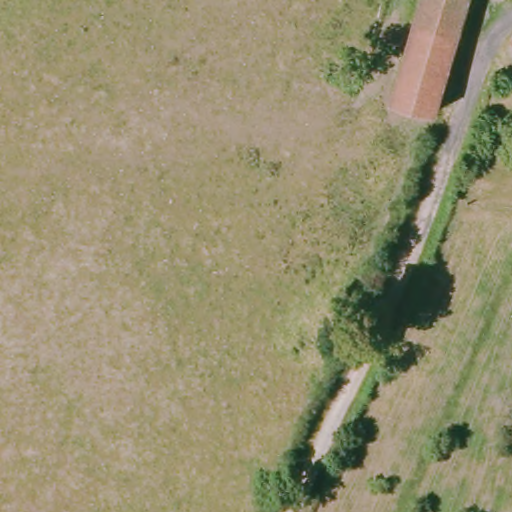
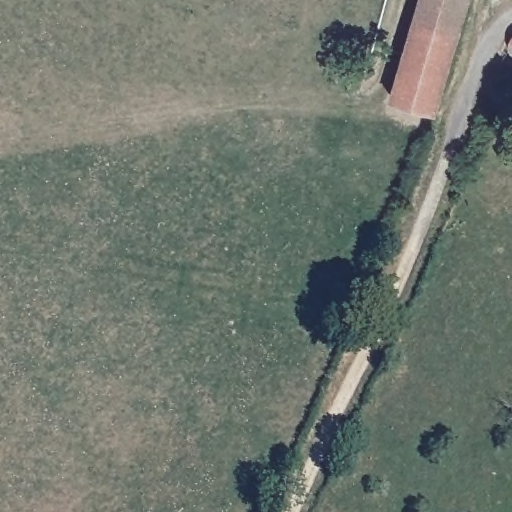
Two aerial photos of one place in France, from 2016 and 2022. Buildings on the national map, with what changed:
unchanged [(390,96),(421,0),(468,0),(435,109),(390,96)]
unchanged [(512,33),(512,55),(505,52),(503,41),(511,33),(512,33)]

